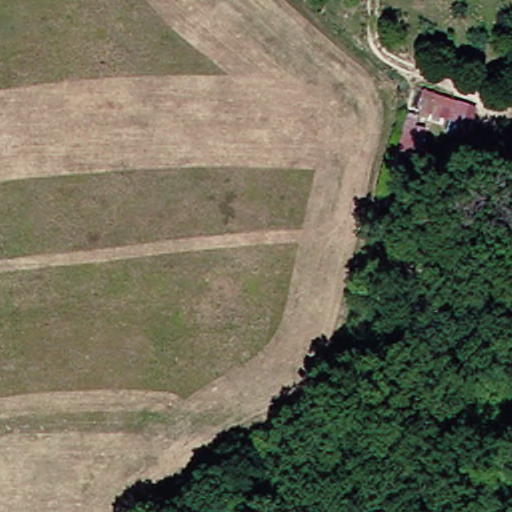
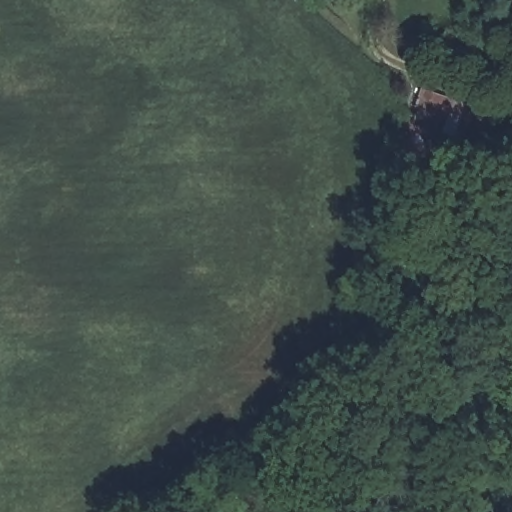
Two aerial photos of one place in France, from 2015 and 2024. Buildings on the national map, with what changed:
unchanged [(431,114),(437,95),(479,108),(469,125),(431,114)]

